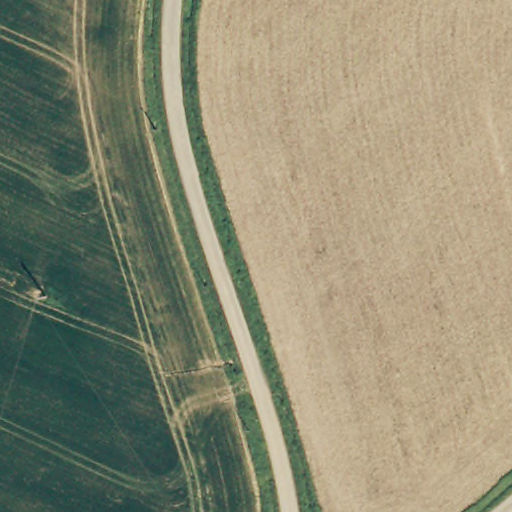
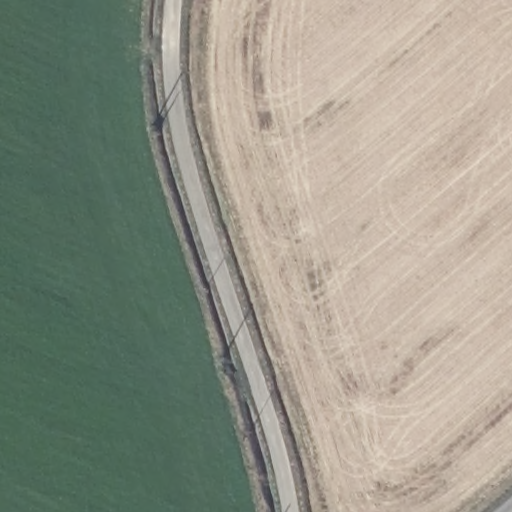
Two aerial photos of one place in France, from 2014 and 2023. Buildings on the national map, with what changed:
[]

